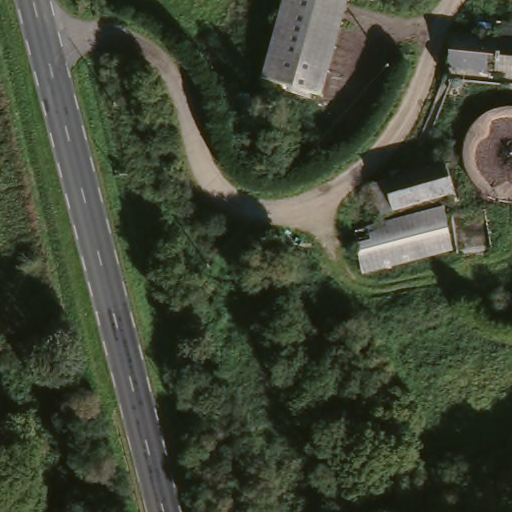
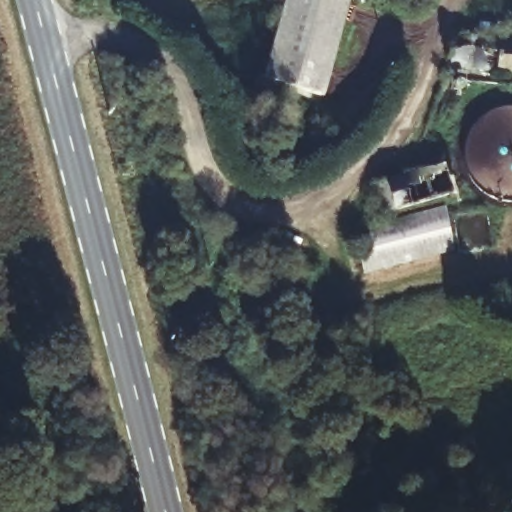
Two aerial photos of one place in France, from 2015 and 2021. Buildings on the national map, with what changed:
unchanged [(268,79),(293,0),(359,0),(328,98),(268,79)]
unchanged [(512,34),(512,65),(445,55),(451,26),(453,26),(455,26),(512,34)]
unchanged [(459,193),(388,215),(378,178),(443,160),(459,193)]
unchanged [(363,273),(357,244),(368,240),(365,230),(446,209),(454,254),(363,273)]

